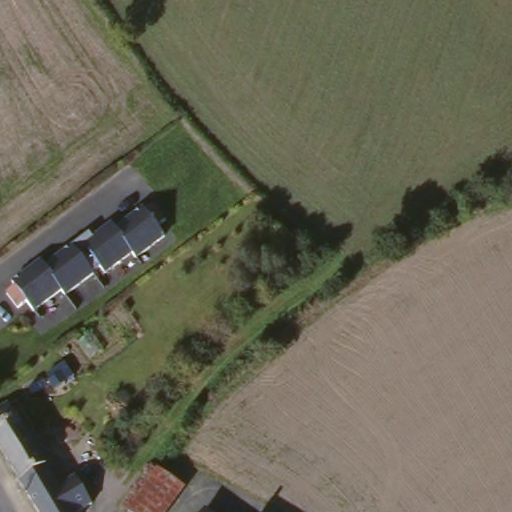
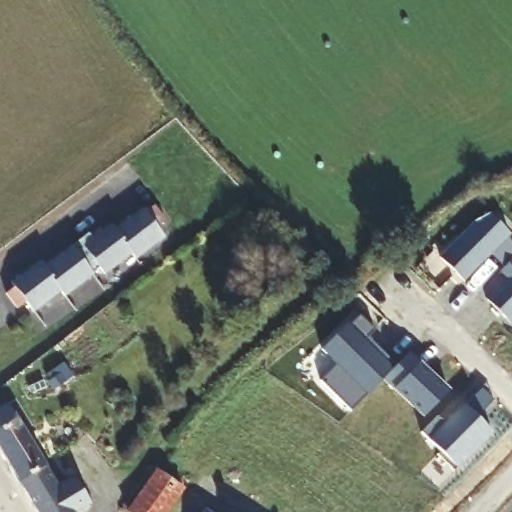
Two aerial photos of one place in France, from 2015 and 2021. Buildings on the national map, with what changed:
unchanged [(11,285),(8,281),(38,259),(41,265),(78,239),(82,244),(111,224),(114,229),(139,212),(143,216),(151,209),(162,224),(153,231),(161,240),(133,260),(130,255),(103,275),(98,270),(63,296),(58,291),(31,311),(23,300),(13,307),(3,292),(11,285)]
new [(493,214),(512,232),(512,234),(508,237),(512,241),(512,261),(507,266),(493,252),(466,280),(443,257),(478,222),(493,214)]
new [(503,270),(507,266),(512,261),(512,321),(490,298),(511,277),(503,270)]
new [(339,363),(324,349),(349,323),(351,325),(361,315),(377,330),(370,337),(398,365),(386,378),(352,412),(323,381),(339,363)]
new [(398,365),(411,352),(451,391),(425,417),(386,378),(398,365)]
new [(446,422),(466,402),(468,405),(485,388),(501,405),(484,422),(494,432),(456,471),(439,455),(442,452),(423,432),(439,416),(446,422)]
unchanged [(0,460),(0,411),(1,410),(43,471),(53,485),(56,490),(73,478),(91,505),(81,512),(35,512),(30,504),(0,460)]
unchanged [(165,512),(123,512),(121,510),(153,472),(178,497),(165,512)]

